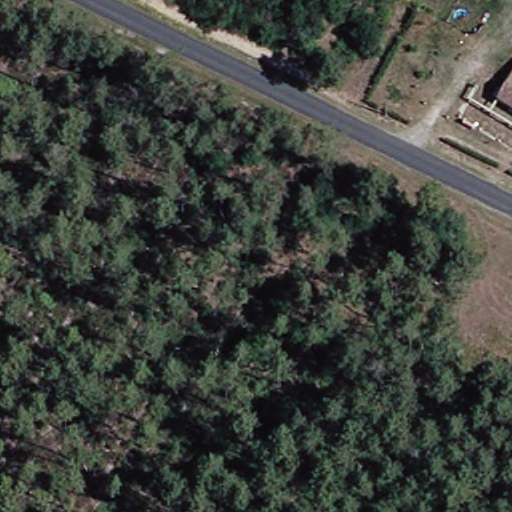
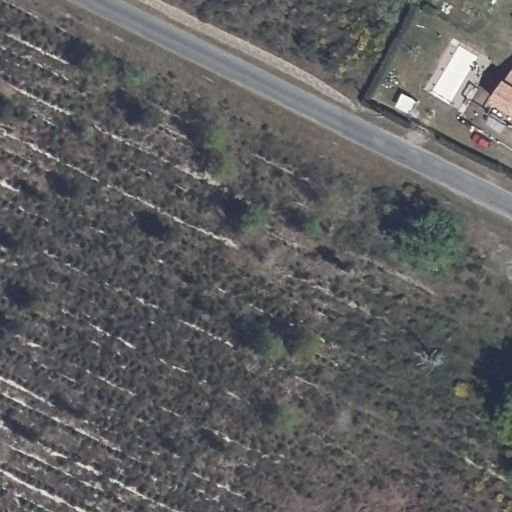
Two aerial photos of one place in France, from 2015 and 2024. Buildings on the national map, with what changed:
unchanged [(512,57),(512,120),(482,102),(512,57)]

